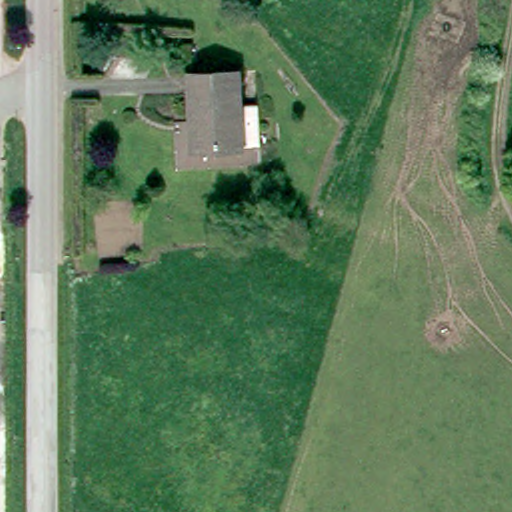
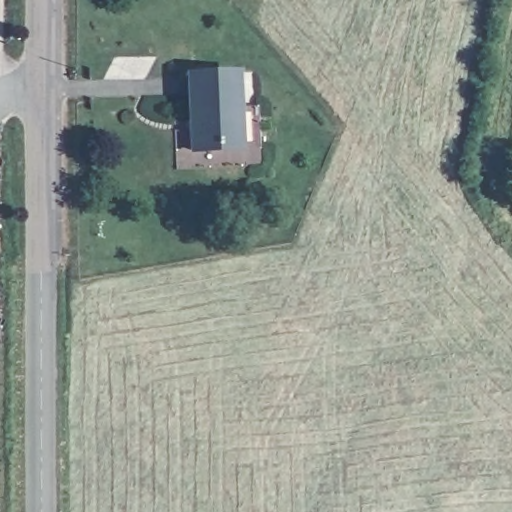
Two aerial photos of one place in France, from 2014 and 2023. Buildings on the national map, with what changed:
unchanged [(193,147),(187,70),(237,66),(243,144),(193,147)]

